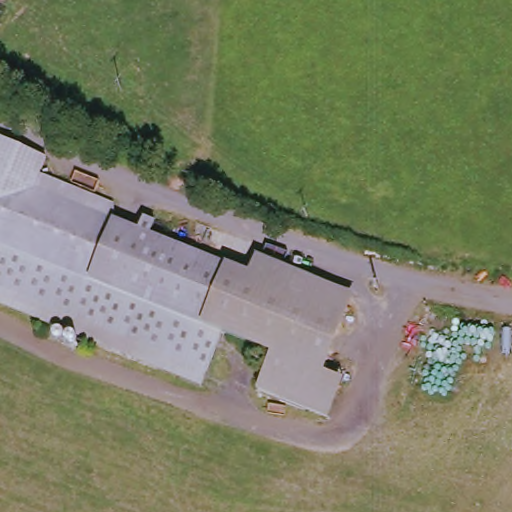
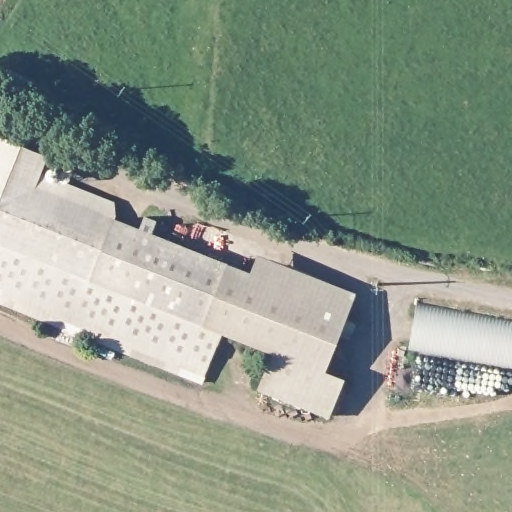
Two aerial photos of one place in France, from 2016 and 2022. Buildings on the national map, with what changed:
unchanged [(356,292),(326,369),(349,378),(334,417),(263,389),(278,352),(228,332),(206,383),(0,300),(0,135),(0,134),(33,148),(51,155),(44,172),(118,202),(120,219),(144,229),(149,217),(161,222),(156,234),(254,274),(262,255),(356,292)]
new [(418,305),(512,322),(512,369),(409,351),(418,305)]

